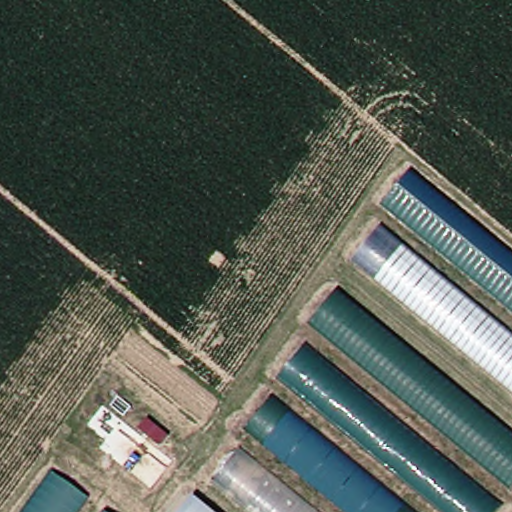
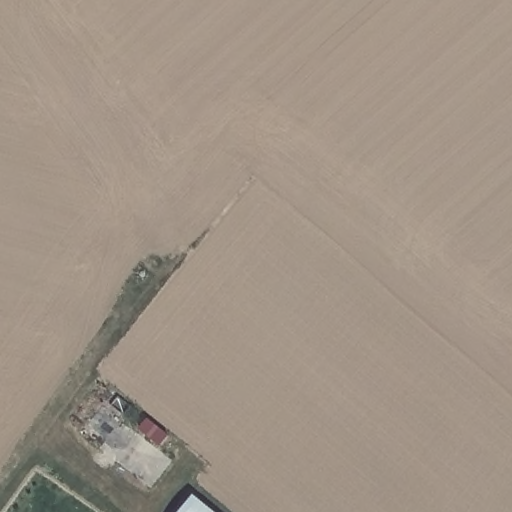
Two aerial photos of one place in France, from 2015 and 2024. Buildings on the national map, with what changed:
demolished [(512,321),(371,206),(397,172),(512,265),(512,321)]
demolished [(512,404),(338,257),(366,227),(512,346),(512,404)]
demolished [(512,474),(496,491),(294,326),(323,290),(512,444),(512,474)]
demolished [(489,507),(485,512),(425,512),(263,378),(294,346),(489,507)]
demolished [(395,512),(323,512),(229,430),(258,398),(395,512)]
demolished [(301,512),(234,512),(199,483),(227,450),(301,512)]
demolished [(49,468),(111,512),(17,512),(49,468)]
unchanged [(205,512),(176,512),(187,498),(205,512)]

